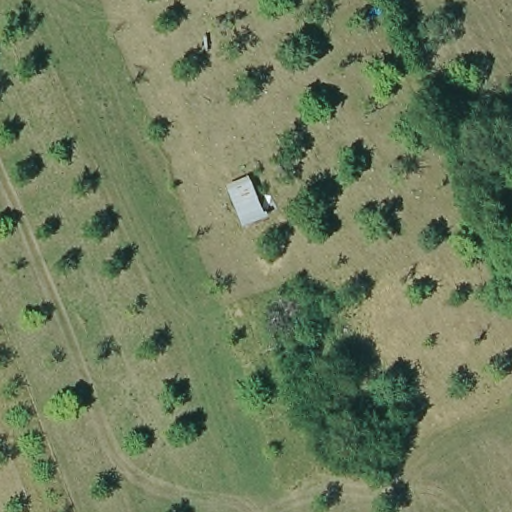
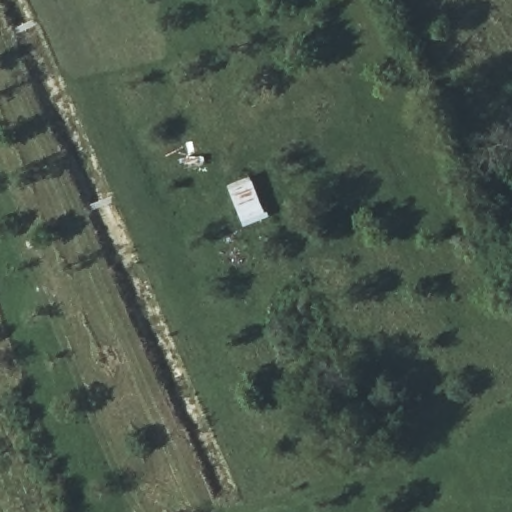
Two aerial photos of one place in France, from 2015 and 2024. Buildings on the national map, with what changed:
unchanged [(268,221),(245,232),(230,189),(252,178),(268,221)]

